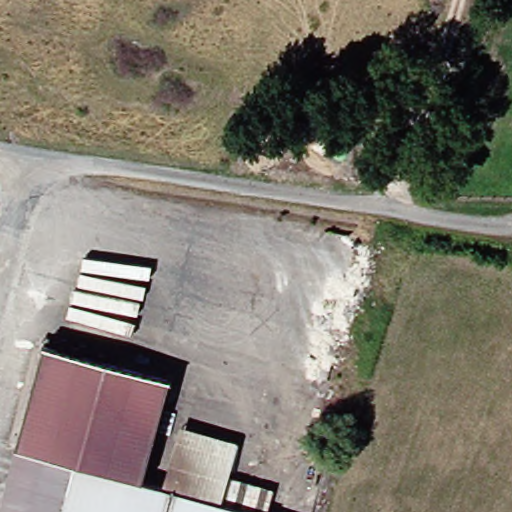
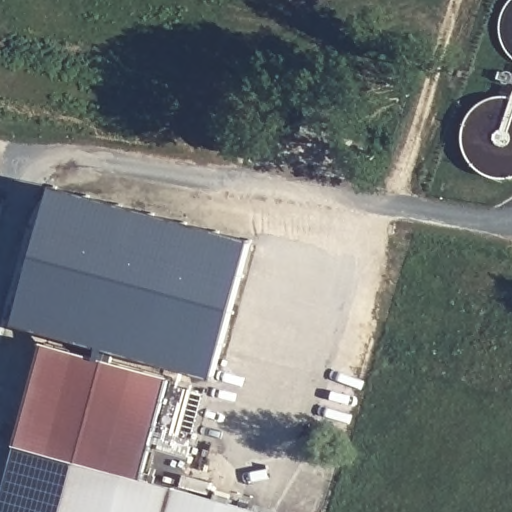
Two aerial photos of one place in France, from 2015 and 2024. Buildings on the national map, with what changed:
new [(208,378),(12,322),(49,188),(245,239),(208,378)]
unchanged [(52,354),(183,387),(154,489),(180,493),(233,506),(267,512),(8,512),(52,354)]

